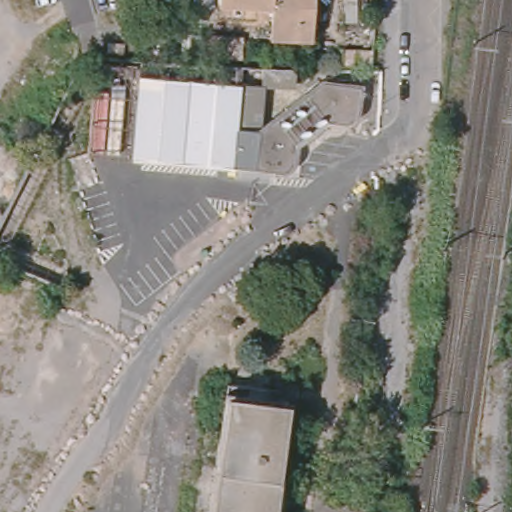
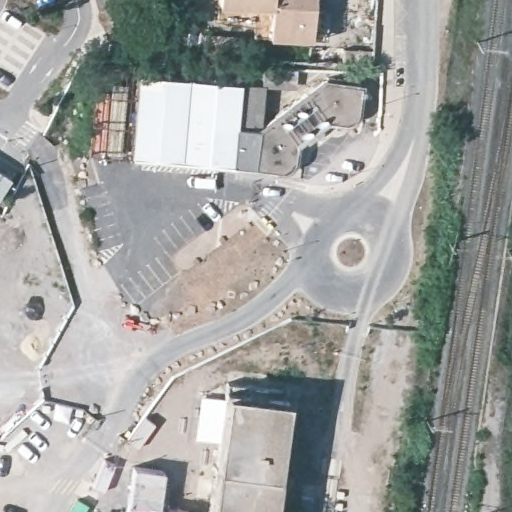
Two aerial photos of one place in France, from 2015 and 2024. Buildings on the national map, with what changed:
unchanged [(256,21),(220,19),(220,0),(321,0),(320,39),(255,36),(256,21)]
unchanged [(89,149),(94,59),(139,61),(139,69),(132,151),(89,149)]
unchanged [(237,76),(235,118),(255,120),(317,75),(358,83),(353,106),(353,108),(352,109),(352,110),(350,111),(349,112),(348,113),(346,114),(345,114),(341,114),(325,111),(293,135),(291,151),(290,156),(288,159),(285,161),(282,161),(279,162),(132,151),(139,69),(237,76)]
unchanged [(226,395),(288,403),(273,512),(211,512),(226,395)]
new [(132,466),(164,470),(160,506),(189,511),(189,512),(125,512),(132,466)]

